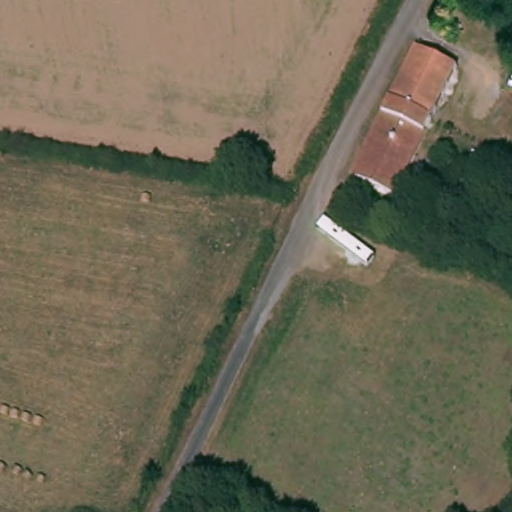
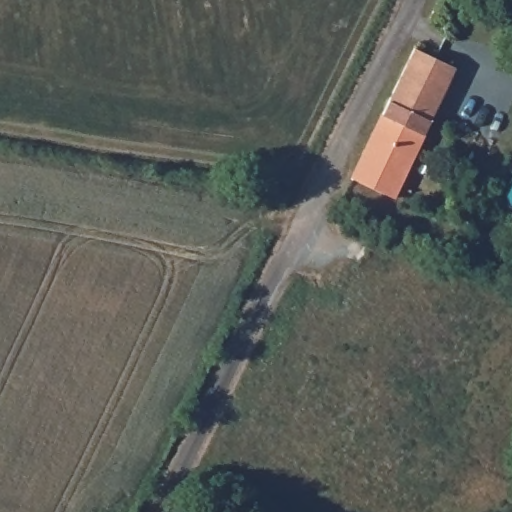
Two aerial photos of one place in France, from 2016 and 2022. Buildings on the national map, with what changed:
unchanged [(411,55),(451,74),(425,127),(391,203),(351,184),(386,109),(411,55)]

